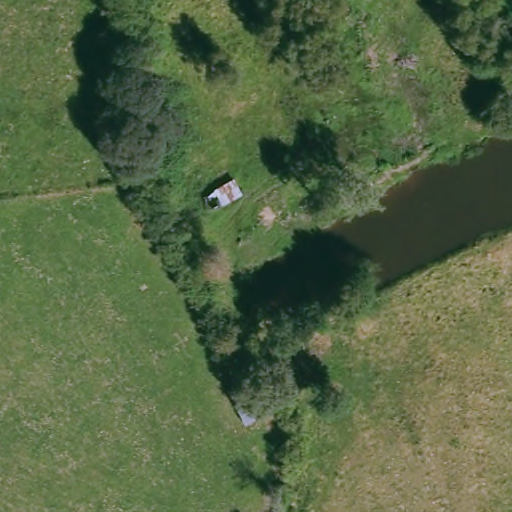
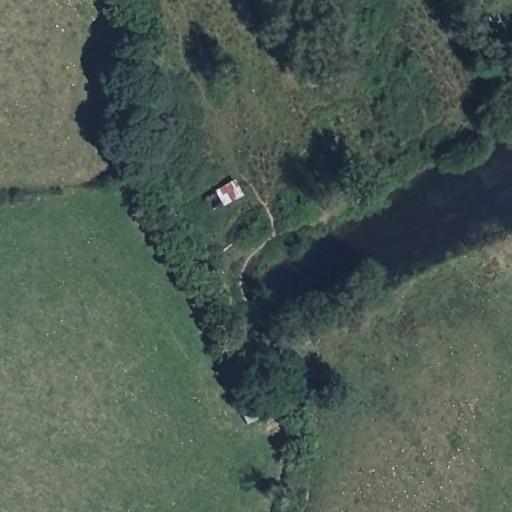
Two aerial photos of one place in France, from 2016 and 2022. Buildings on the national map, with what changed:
unchanged [(245,197),(209,215),(200,196),(233,177),(245,197)]

